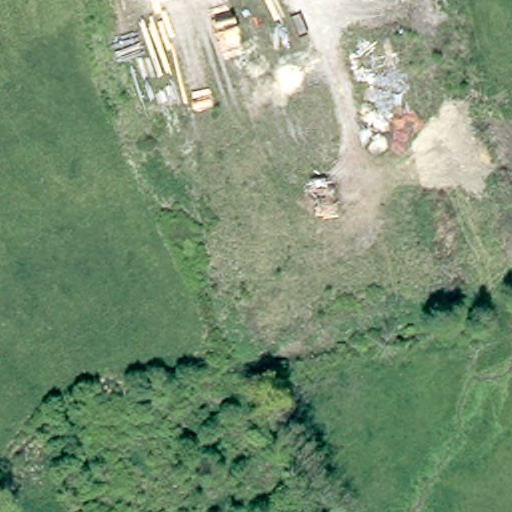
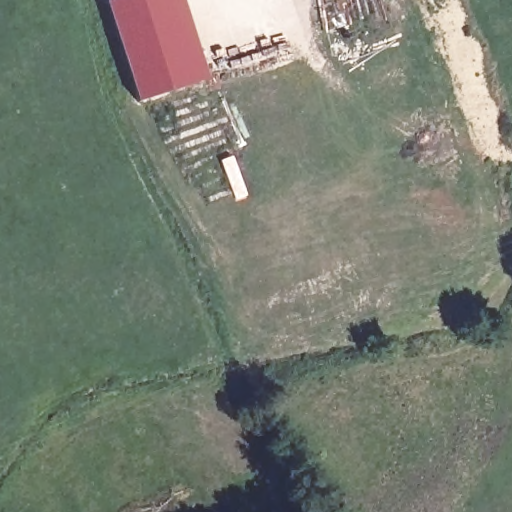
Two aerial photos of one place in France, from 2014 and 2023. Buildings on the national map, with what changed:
new [(136,101),(105,4),(115,0),(182,0),(207,79),(136,101)]
demolished [(244,209),(212,223),(197,173),(224,163),(244,209)]

